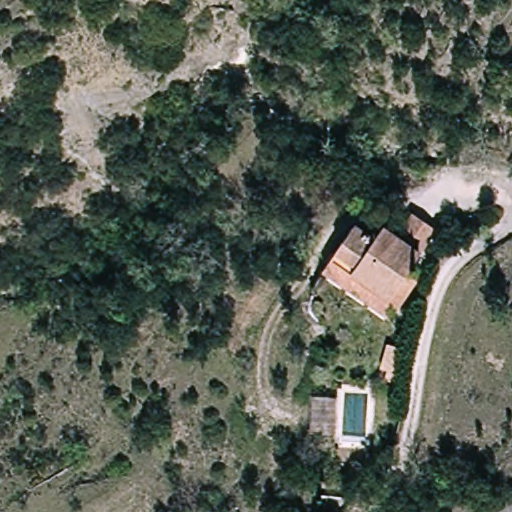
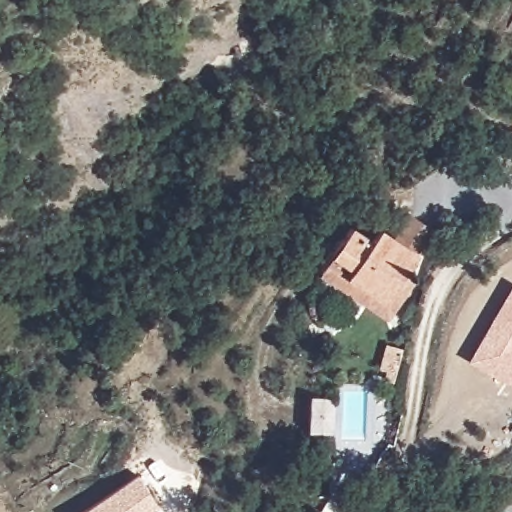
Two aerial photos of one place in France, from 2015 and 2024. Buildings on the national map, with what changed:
unchanged [(393,296),(332,260),(354,224),(377,237),(384,225),(399,233),(413,211),(435,225),(422,247),(408,271),(393,296)]
unchanged [(393,296),(408,271),(419,277),(394,317),(323,273),(332,260),(393,296)]
new [(468,358),(512,282),(512,386),(468,358)]
unchanged [(390,372),(381,370),(385,347),(404,351),(400,373),(395,389),(386,387),(390,372)]
unchanged [(344,398),(339,431),(310,426),(315,393),(344,398)]
demolished [(372,440),(375,424),(385,426),(381,442),(372,440)]
new [(159,508),(153,512),(82,512),(138,476),(159,508)]

